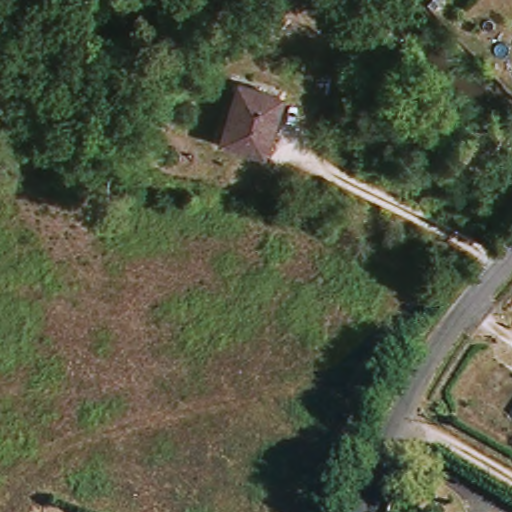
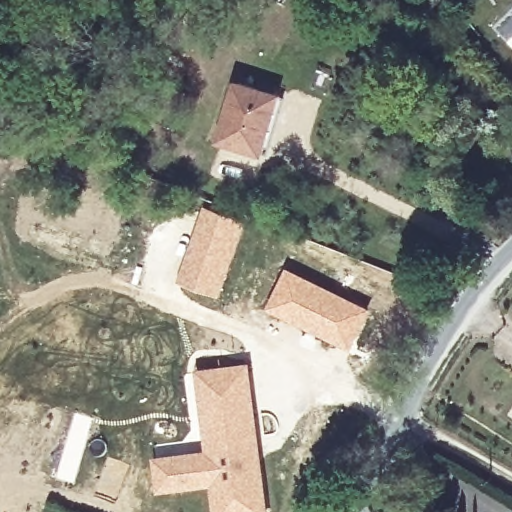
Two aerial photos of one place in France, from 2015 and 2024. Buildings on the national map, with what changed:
unchanged [(260,155),(222,151),(235,89),(280,95),(265,156),(260,155)]
new [(204,204),(247,220),(219,296),(176,278),(204,204)]
new [(286,267),(372,309),(352,348),(266,307),(286,267)]
new [(205,448),(193,370),(250,362),(260,432),(270,512),(214,512),(209,487),(159,493),(153,456),(205,448)]

